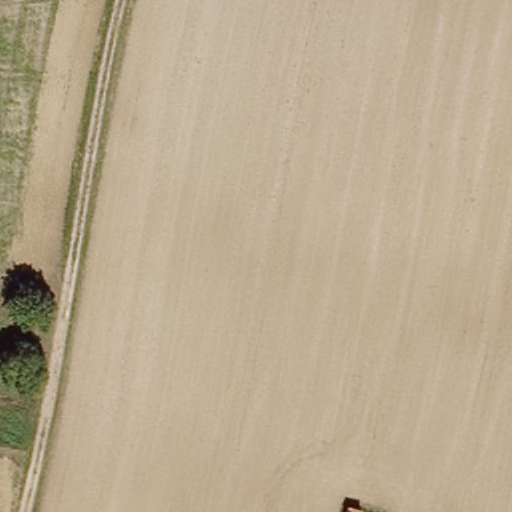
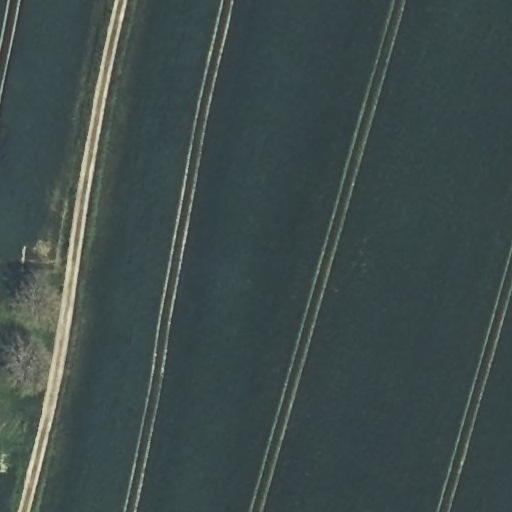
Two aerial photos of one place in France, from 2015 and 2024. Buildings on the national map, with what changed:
unchanged [(359,492),(368,493),(372,484),(378,485),(389,466),(399,469),(386,512),(365,512),(353,508),(359,492)]

